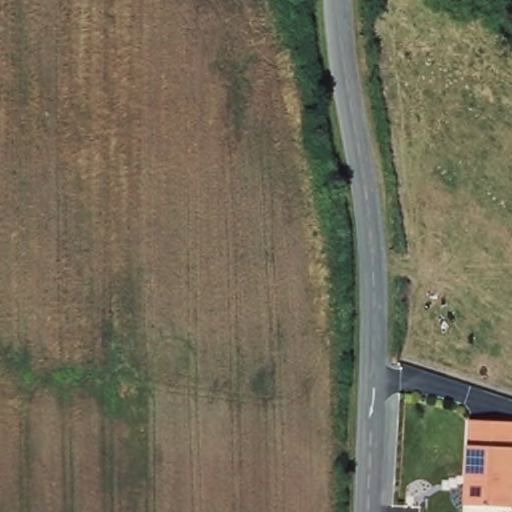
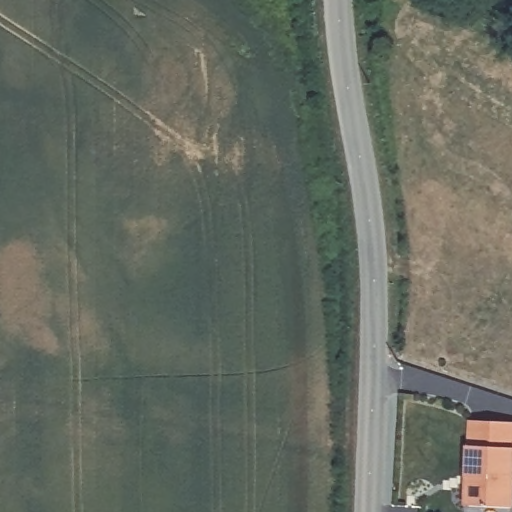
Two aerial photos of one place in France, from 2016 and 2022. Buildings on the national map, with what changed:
unchanged [(462,445),(466,419),(512,423),(512,509),(460,506),(462,445)]

